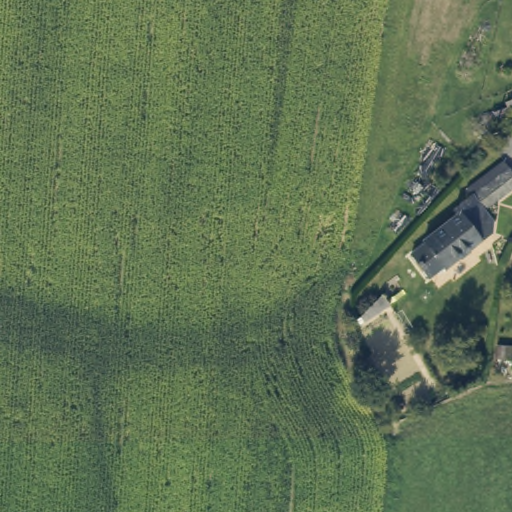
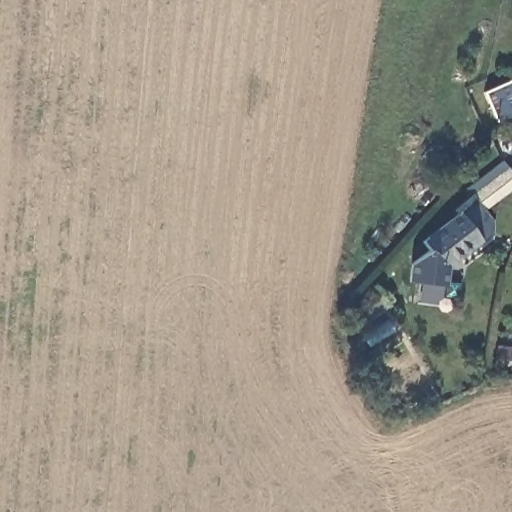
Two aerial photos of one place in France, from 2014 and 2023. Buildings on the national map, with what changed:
unchanged [(505,104),(512,101),(512,115),(505,104)]
unchanged [(506,194),(470,221),(478,235),(475,245),(430,282),(406,252),(444,224),(440,219),(465,201),(497,180),(506,194)]
unchanged [(498,344),(512,347),(512,363),(495,360),(498,344)]

